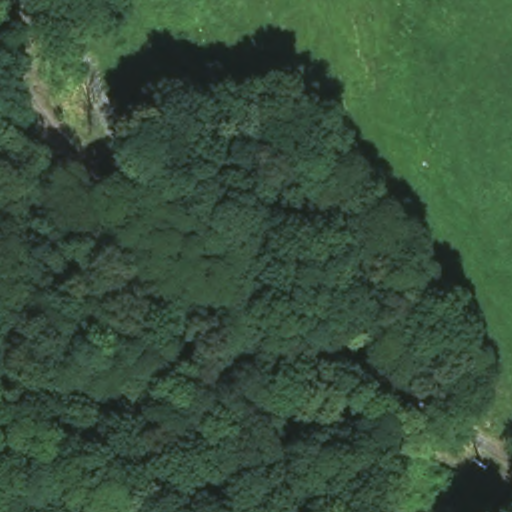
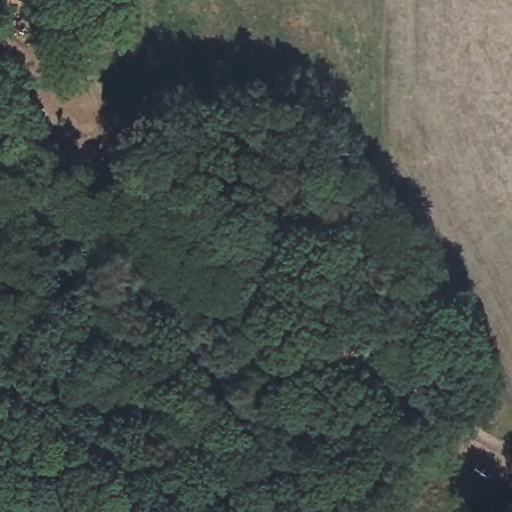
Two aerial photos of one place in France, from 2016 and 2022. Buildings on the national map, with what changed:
unchanged [(0,2),(0,0),(2,0),(0,2)]

